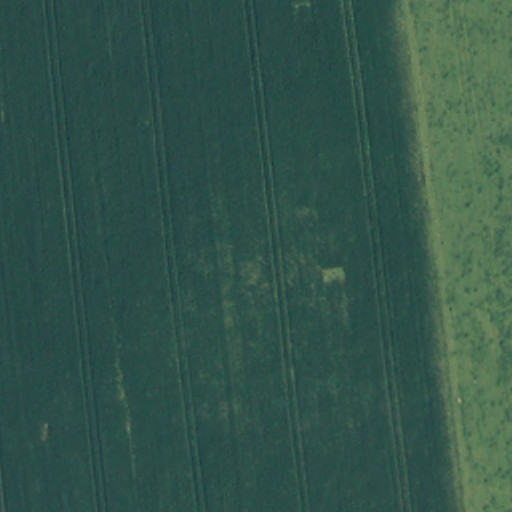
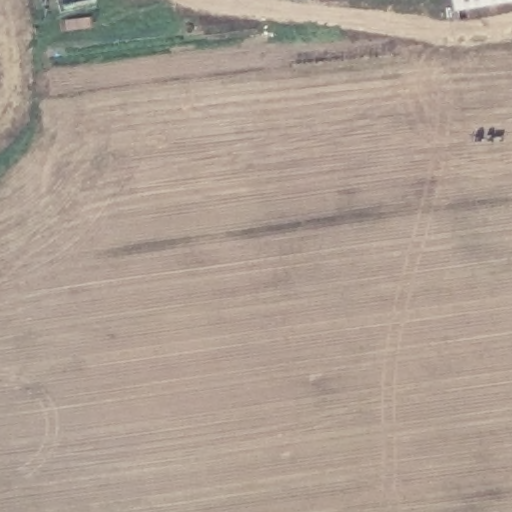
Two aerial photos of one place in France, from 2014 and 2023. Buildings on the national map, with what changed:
new [(512,5),(456,14),(453,0),(512,0),(512,5)]

